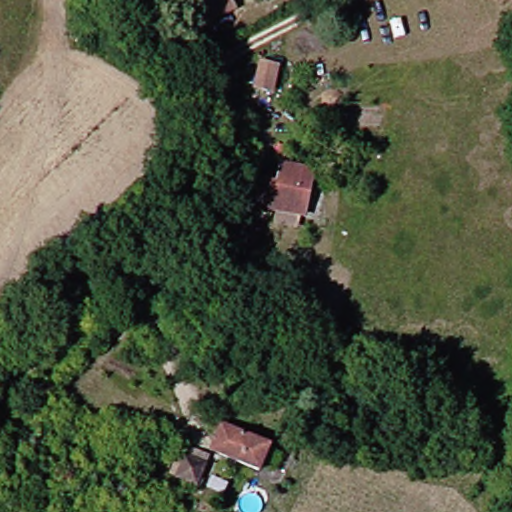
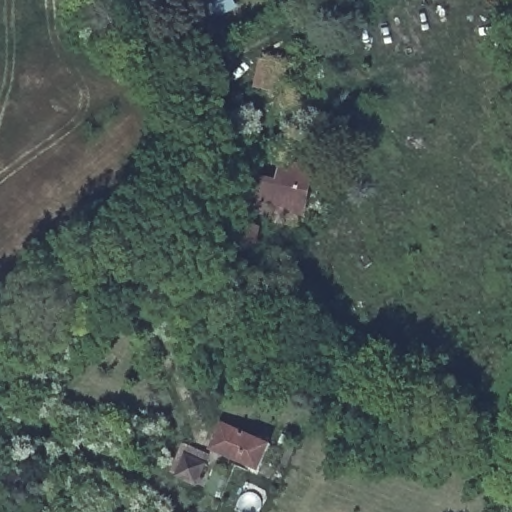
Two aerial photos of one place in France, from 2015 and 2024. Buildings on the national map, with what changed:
unchanged [(215,22),(205,0),(206,0),(236,0),(240,9),(215,22)]
unchanged [(276,89),(262,85),(268,60),(281,63),(276,89)]
unchanged [(285,182),(291,161),(316,169),(303,215),(270,205),(256,200),(263,176),(277,180),(285,182)]
unchanged [(277,440),(265,468),(215,451),(225,424),(277,440)]
unchanged [(182,463),(188,465),(205,468),(200,489),(180,485),(182,463)]

